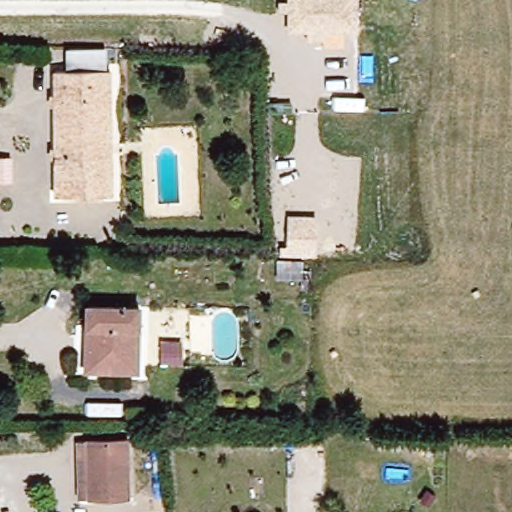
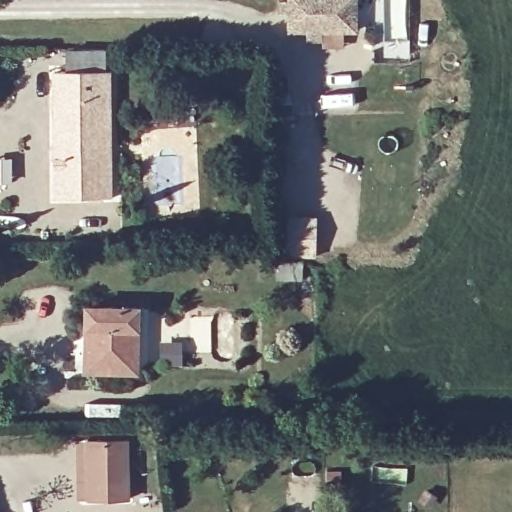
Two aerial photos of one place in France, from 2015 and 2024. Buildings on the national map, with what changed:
unchanged [(359,34),(287,32),(287,0),(359,0),(359,34)]
unchanged [(52,69),(110,70),(111,156),(106,157),(107,191),(67,193),(67,220),(54,217),(52,69)]
unchanged [(318,213),(318,254),(285,252),(285,214),(318,213)]
unchanged [(82,320),(83,305),(137,306),(137,365),(116,365),(115,353),(92,351),(91,322),(82,320)]
unchanged [(137,374),(83,375),(82,320),(91,322),(92,351),(115,353),(116,365),(137,365),(137,374)]
unchanged [(89,440),(126,444),(125,501),(86,502),(89,440)]

